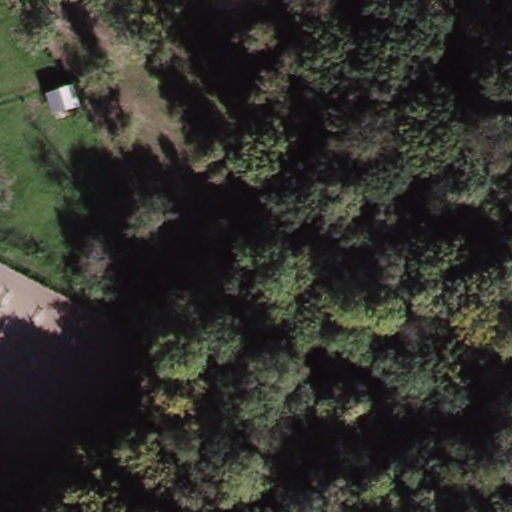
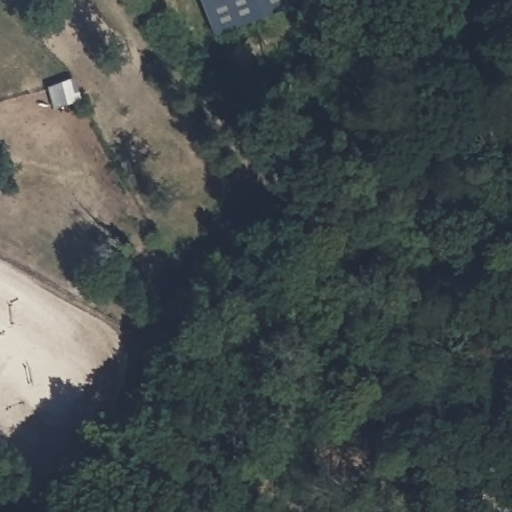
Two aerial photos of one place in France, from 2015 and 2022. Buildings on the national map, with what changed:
new [(312,2),(209,41),(194,0),(312,0),(312,2)]

